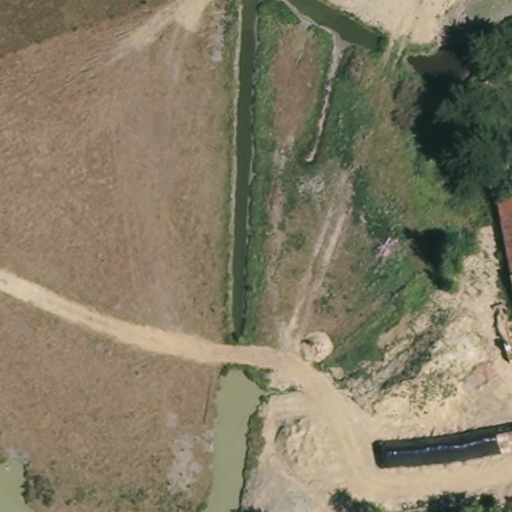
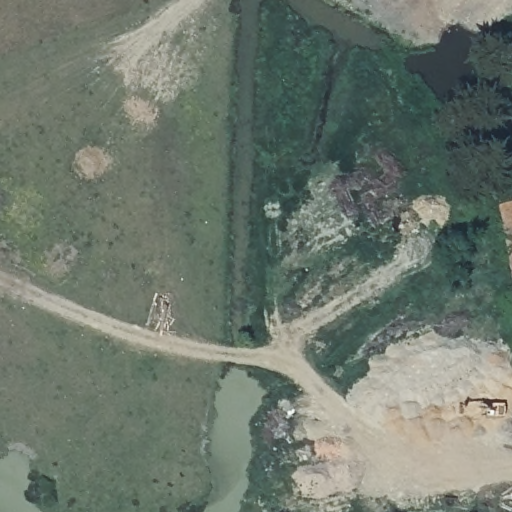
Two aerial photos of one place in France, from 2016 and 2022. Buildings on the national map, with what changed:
unchanged [(496,208),(512,205),(512,274),(496,208)]

